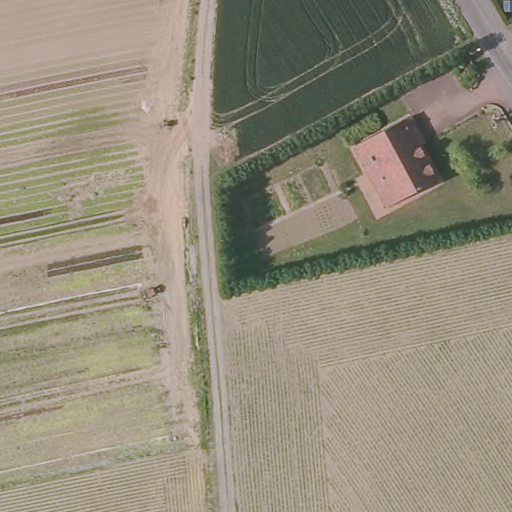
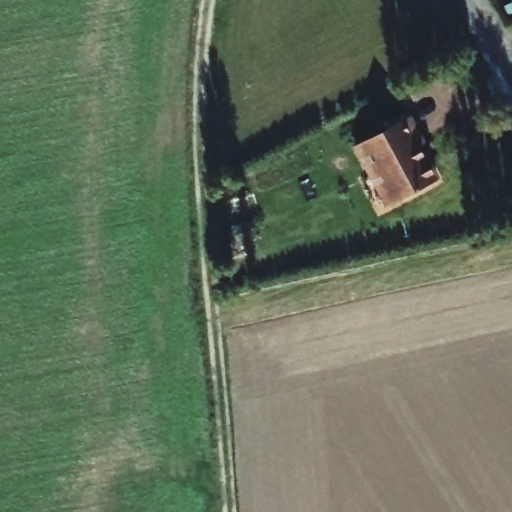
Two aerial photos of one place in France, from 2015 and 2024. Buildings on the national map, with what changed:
unchanged [(502,2),(512,1),(512,10),(502,11),(502,2)]
unchanged [(352,147),(407,118),(413,132),(409,137),(433,182),(390,205),(372,169),(365,173),(352,147)]

